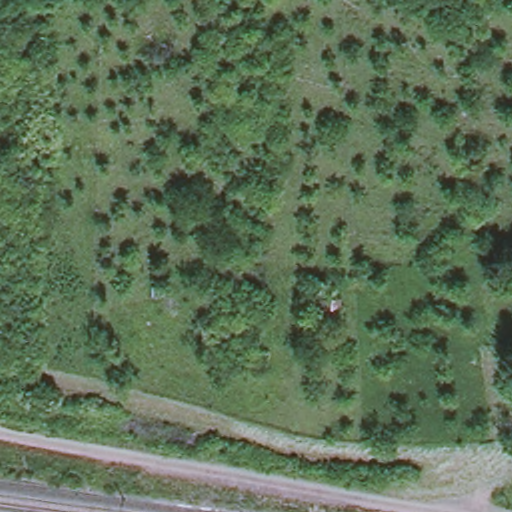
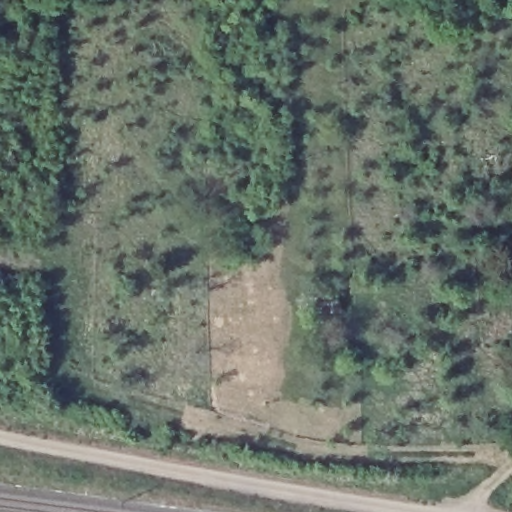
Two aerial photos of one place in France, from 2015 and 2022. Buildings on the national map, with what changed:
unchanged [(340,297),(341,310),(316,311),(315,298),(340,297)]

